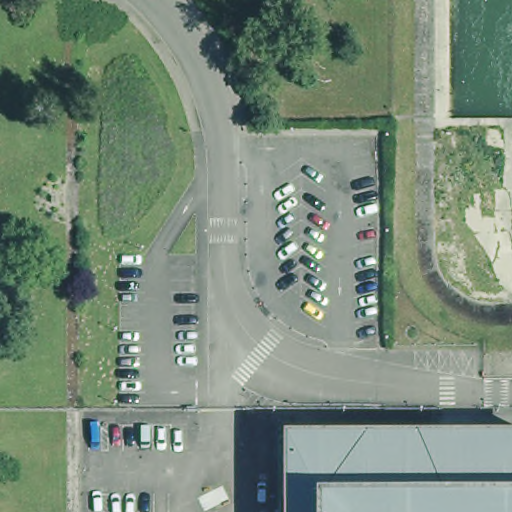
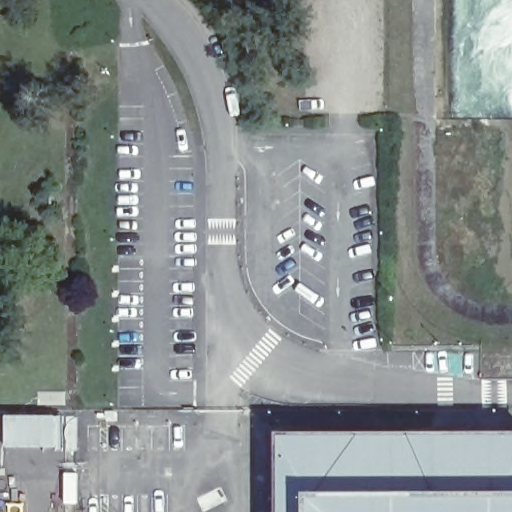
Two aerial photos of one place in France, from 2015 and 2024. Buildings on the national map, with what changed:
new [(5,413),(62,414),(61,447),(4,447),(5,413)]
unchanged [(507,449),(507,467),(512,467),(512,512),(282,512),(282,450),(507,449)]

